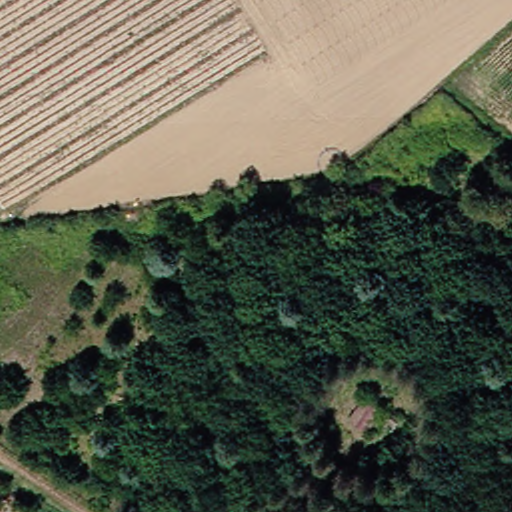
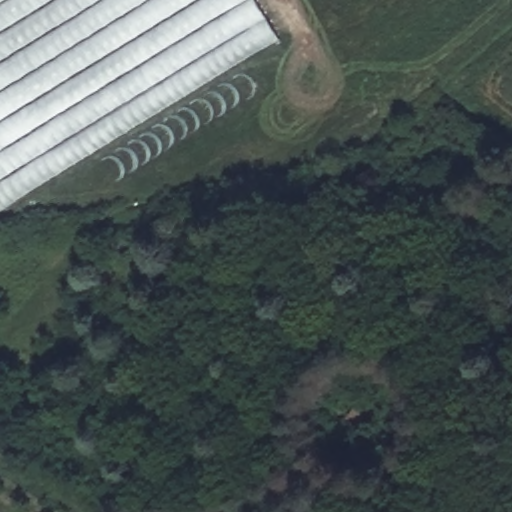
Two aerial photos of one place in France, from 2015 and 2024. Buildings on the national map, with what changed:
new [(0,0),(255,0),(279,40),(0,211),(0,0)]
unchanged [(380,409),(373,420),(381,426),(372,439),(345,420),(363,397),(380,409)]

